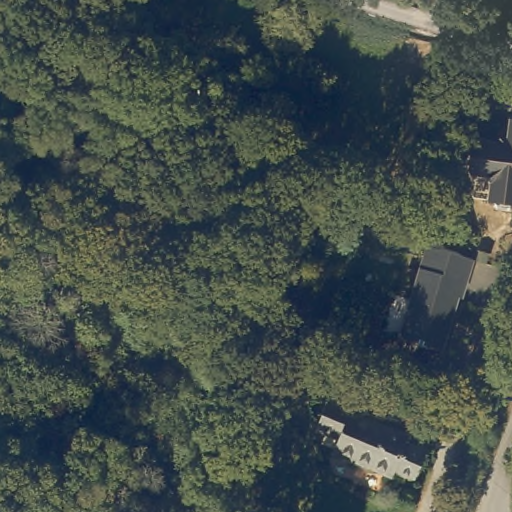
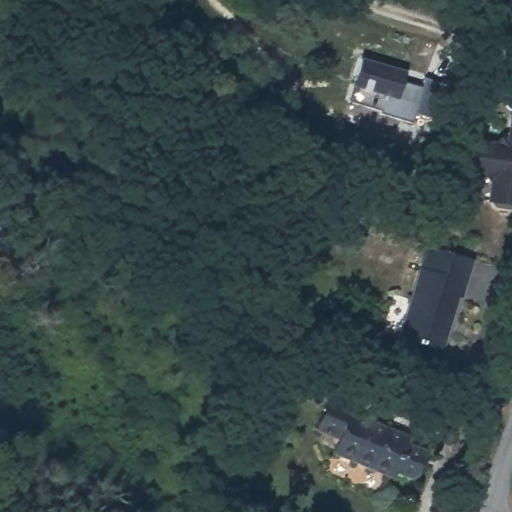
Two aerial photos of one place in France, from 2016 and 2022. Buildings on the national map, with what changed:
new [(364,59),(408,76),(405,85),(423,91),(427,83),(444,89),(431,124),(415,118),(412,127),(380,115),(380,113),(349,101),(364,59)]
unchanged [(508,198),(505,206),(488,201),(490,196),(485,194),(490,173),(489,169),(487,166),(475,162),(482,137),(507,144),(512,141),(512,198),(508,198)]
unchanged [(346,186),(340,201),(312,190),(318,175),(346,186)]
unchanged [(458,301),(454,300),(438,350),(397,336),(427,244),(471,260),(458,301)]
unchanged [(486,265),(471,260),(474,250),(489,256),(486,265)]
unchanged [(330,424),(319,419),(332,391),(356,401),(355,404),(412,430),(409,435),(429,445),(416,472),(397,463),(393,469),(337,443),(338,440),(326,434),(330,424)]

